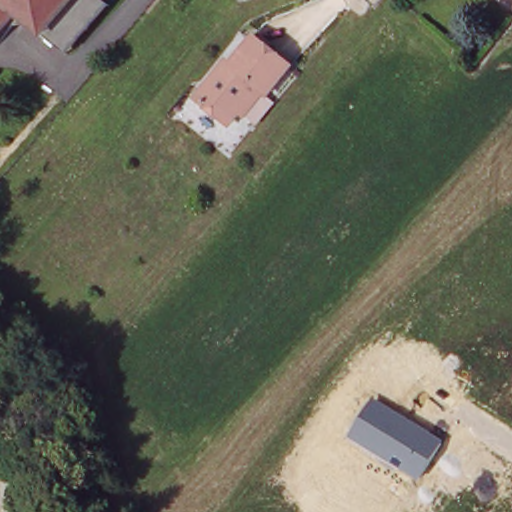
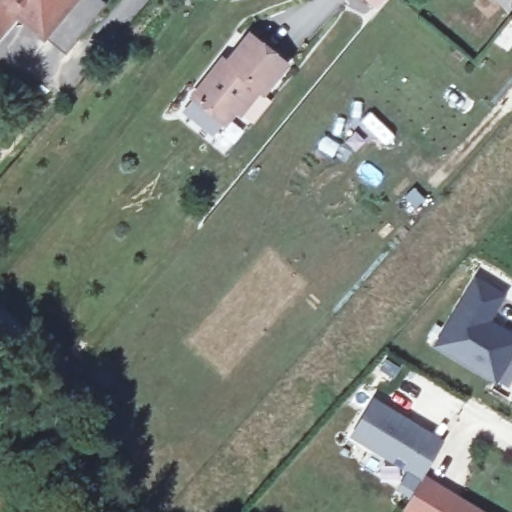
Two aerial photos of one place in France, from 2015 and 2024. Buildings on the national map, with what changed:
unchanged [(47,35),(27,17),(14,19),(9,14),(4,20),(0,24),(0,0),(76,0),(47,35)]
unchanged [(102,1),(62,48),(47,35),(76,0),(102,0),(102,1)]
unchanged [(511,6),(512,4),(512,6),(511,6)]
unchanged [(240,108),(230,119),(199,90),(225,61),(230,55),(235,59),(257,33),(293,64),(269,92),(265,88),(245,112),(240,108)]
new [(472,271),(505,292),(490,316),(512,332),(512,356),(495,384),(428,342),(472,271)]
unchanged [(444,439),(420,478),(349,437),(373,397),(444,439)]
new [(486,512),(404,512),(401,510),(420,478),(422,473),(486,512)]

